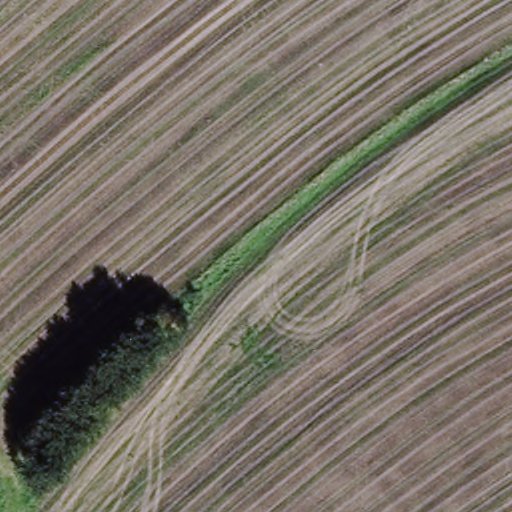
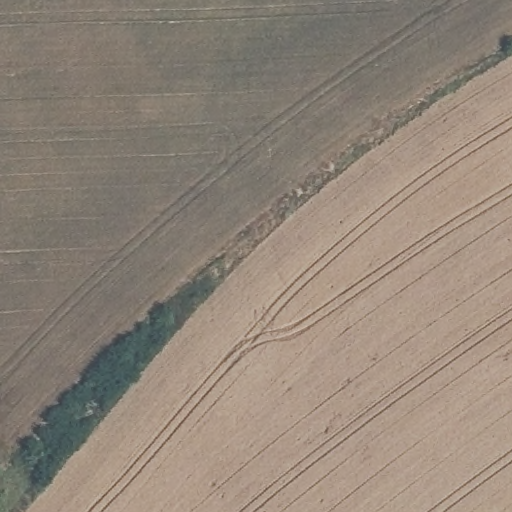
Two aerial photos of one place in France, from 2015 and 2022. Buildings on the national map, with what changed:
[]

